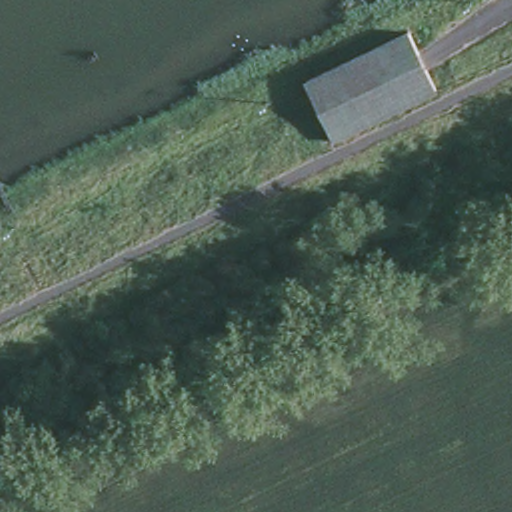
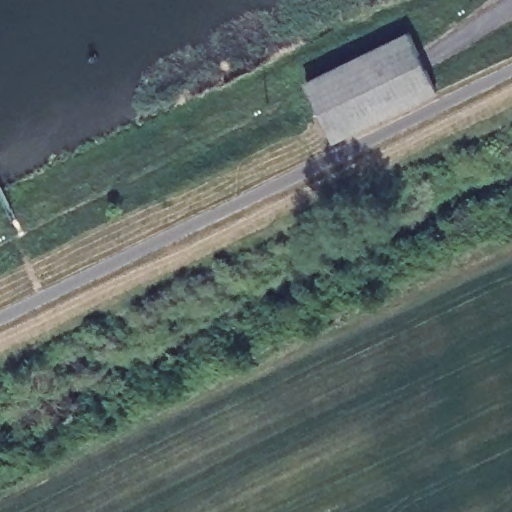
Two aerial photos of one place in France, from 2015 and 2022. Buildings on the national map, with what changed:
unchanged [(434,89),(333,138),(305,80),(405,31),(434,89)]

